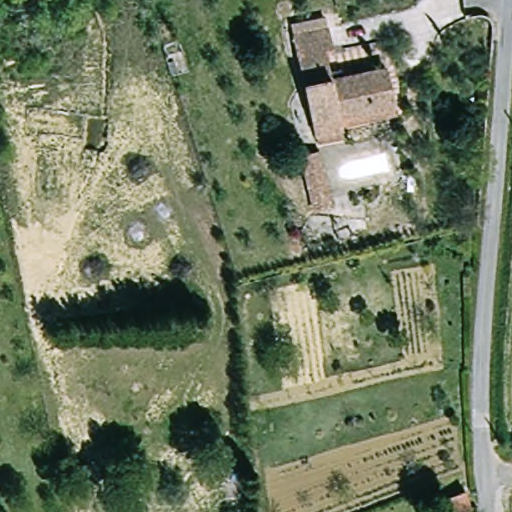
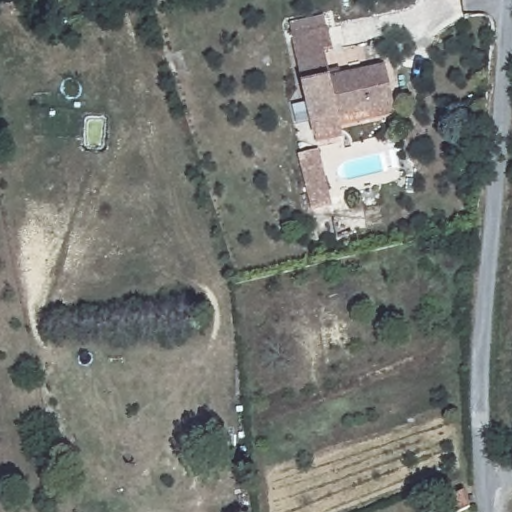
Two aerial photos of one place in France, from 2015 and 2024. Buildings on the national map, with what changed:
unchanged [(318,134),(290,35),(322,26),(329,48),(322,50),(326,64),(339,60),(343,74),(382,63),(393,101),(395,111),(343,126),(347,138),(321,145),(318,134)]
unchanged [(298,154),(320,152),(334,208),(311,211),(298,154)]
unchanged [(471,501),(472,504),(452,512),(448,512),(448,511),(442,497),(465,488),(471,501)]

